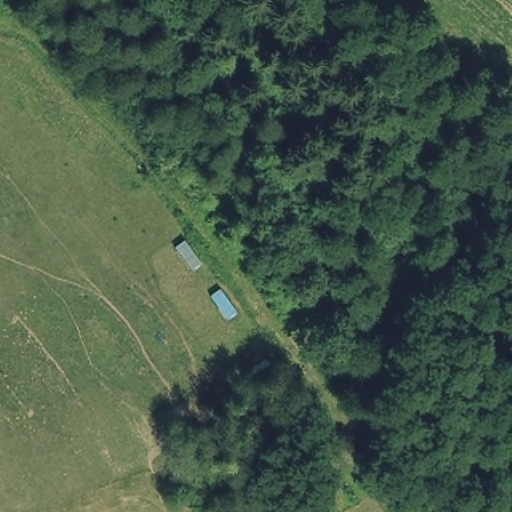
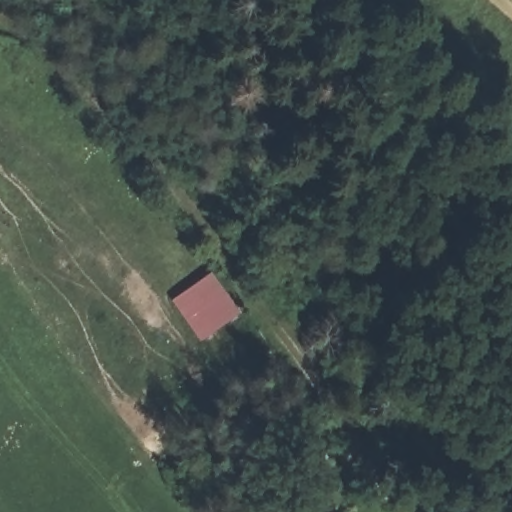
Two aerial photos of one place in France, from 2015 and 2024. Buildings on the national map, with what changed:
new [(213,272),(239,311),(201,338),(174,300),(213,272)]

